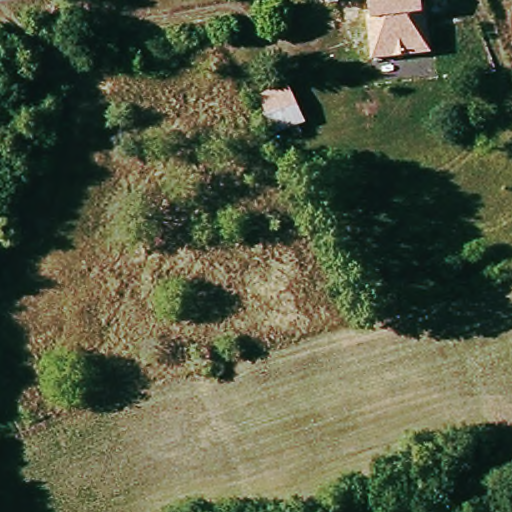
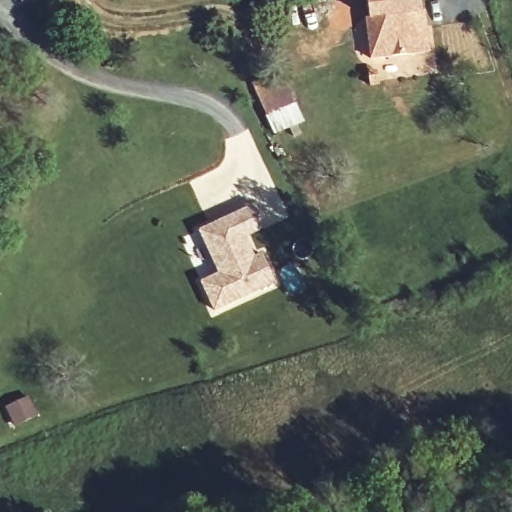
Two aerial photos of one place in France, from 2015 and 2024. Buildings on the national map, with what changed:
unchanged [(366,20),(371,17),(368,0),(420,0),(422,12),(428,12),(433,52),(371,60),(366,20)]
unchanged [(258,93),(289,80),(306,121),(276,134),(258,93)]
new [(267,228),(246,238),(254,255),(263,251),(277,285),(214,313),(200,282),(218,273),(198,229),(254,203),(267,228)]

